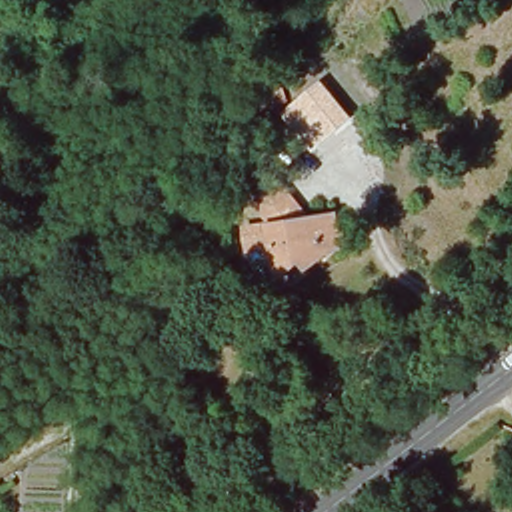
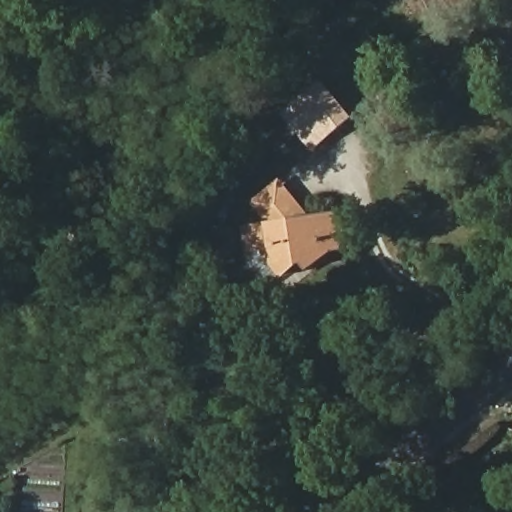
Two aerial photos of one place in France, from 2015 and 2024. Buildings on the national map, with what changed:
unchanged [(315,152),(281,112),(322,79),(353,118),(315,152)]
unchanged [(284,181),(311,213),(272,221),(264,209),(258,201),(268,193),(284,181)]
unchanged [(284,270),(282,268),(266,245),(254,248),(252,248),(247,226),(260,223),(272,221),(311,213),(337,208),(340,221),(351,220),(353,244),(336,245),(314,264),(309,268),(284,270)]

